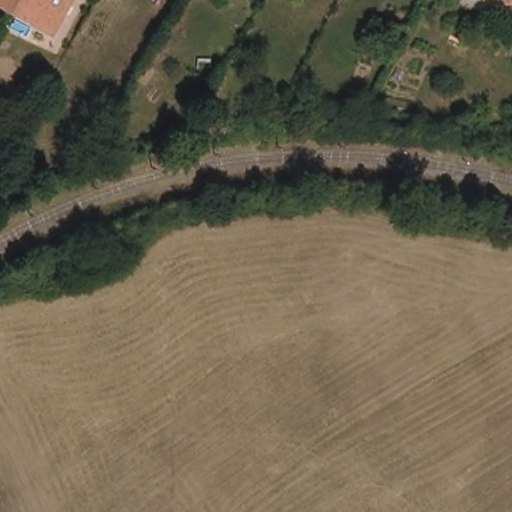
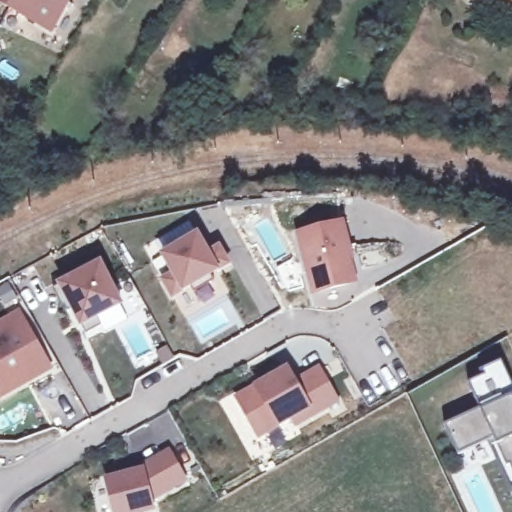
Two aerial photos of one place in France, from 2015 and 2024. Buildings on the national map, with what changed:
unchanged [(0,5),(0,0),(66,0),(48,32),(0,5)]
unchanged [(501,0),(512,0),(512,5),(501,0)]
new [(342,228),(348,253),(346,253),(355,287),(314,297),(299,239),(342,228)]
new [(170,270),(160,253),(194,233),(204,250),(215,244),(224,259),(206,269),(210,276),(189,288),(185,282),(168,291),(160,276),(170,270)]
new [(93,259),(113,298),(90,309),(95,318),(79,326),(67,303),(62,305),(60,300),(58,301),(48,282),(93,259)]
new [(0,331),(20,320),(48,371),(14,390),(0,397),(0,396),(0,331)]
new [(501,442),(494,446),(491,441),(460,454),(448,425),(485,408),(471,382),(486,375),(483,370),(504,359),(512,385),(512,487),(511,487),(511,463),(501,442)]
new [(289,369),(296,382),(320,368),(340,401),(298,424),(295,418),(261,437),(239,398),(289,369)]
new [(146,474),(144,470),(171,454),(187,481),(154,501),(156,511),(152,512),(117,512),(109,484),(146,474)]

